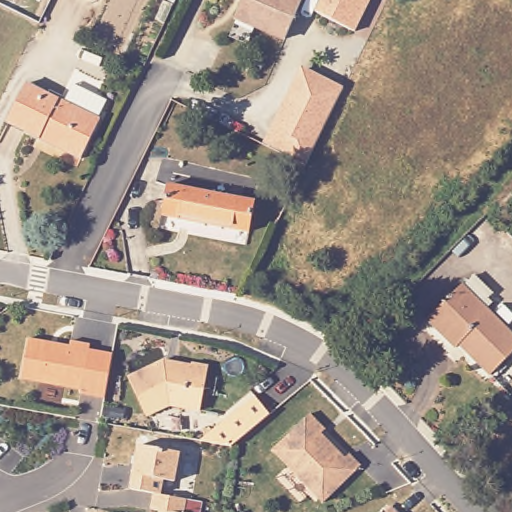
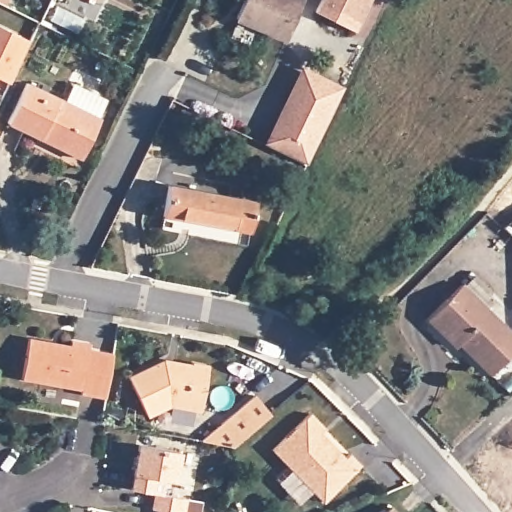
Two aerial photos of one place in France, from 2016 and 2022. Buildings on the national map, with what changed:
unchanged [(243,0),(302,0),(285,40),(235,17),(243,0)]
unchanged [(321,0),(371,0),(354,34),(315,14),(321,0)]
new [(30,41),(1,100),(0,100),(0,27),(30,41)]
unchanged [(343,87),(305,165),(262,143),(300,66),(343,87)]
unchanged [(21,89),(59,107),(67,89),(102,105),(93,123),(95,124),(77,164),(2,129),(21,89)]
new [(1,100),(0,102),(0,100),(1,100)]
unchanged [(162,215),(167,185),(255,201),(249,232),(162,215)]
unchanged [(512,353),(492,375),(465,349),(467,347),(462,342),(457,347),(427,320),(462,285),(512,332),(512,353)]
unchanged [(70,346),(71,341),(90,345),(90,349),(82,390),(21,379),(29,338),(70,346)]
unchanged [(90,349),(112,353),(103,398),(82,393),(82,390),(90,349)]
unchanged [(129,372),(164,356),(191,360),(192,357),(209,360),(201,405),(170,400),(147,410),(129,372)]
unchanged [(254,396),(270,415),(232,446),(222,445),(200,440),(254,396)]
unchanged [(312,412),(327,428),(322,432),(346,457),(351,453),(362,465),(323,501),(273,448),(312,412)]
unchanged [(152,511),(155,494),(130,490),(136,445),(182,453),(177,483),(165,481),(162,496),(188,500),(186,512),(155,512),(152,511)]
unchanged [(392,506),(398,512),(385,512),(392,506)]

